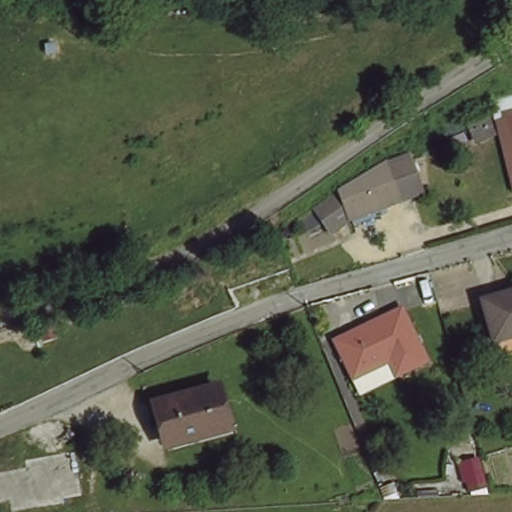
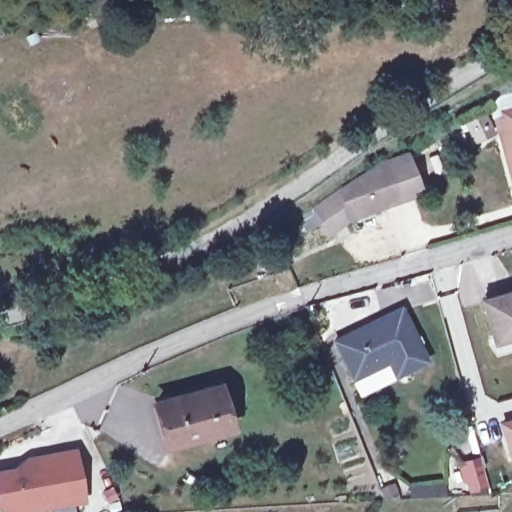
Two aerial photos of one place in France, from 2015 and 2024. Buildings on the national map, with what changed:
unchanged [(500,126),(495,113),(512,106),(512,141),(507,125),(500,126)]
unchanged [(512,157),(512,175),(506,160),(512,157)]
unchanged [(335,193),(381,167),(400,161),(411,195),(391,201),(342,218),(335,193)]
unchanged [(485,297),(512,289),(512,331),(495,336),(485,297)]
unchanged [(388,359),(353,372),(338,338),(400,311),(422,360),(402,369),(393,373),(388,359)]
unchanged [(225,431),(201,438),(200,433),(162,442),(151,402),(212,386),(225,431)]
new [(498,421),(512,417),(512,452),(508,453),(498,421)]
new [(32,462),(31,454),(80,446),(88,489),(70,492),(70,497),(18,507),(16,496),(2,498),(0,485),(0,468),(32,462)]
unchanged [(482,486),(469,490),(460,462),(473,457),(482,486)]

